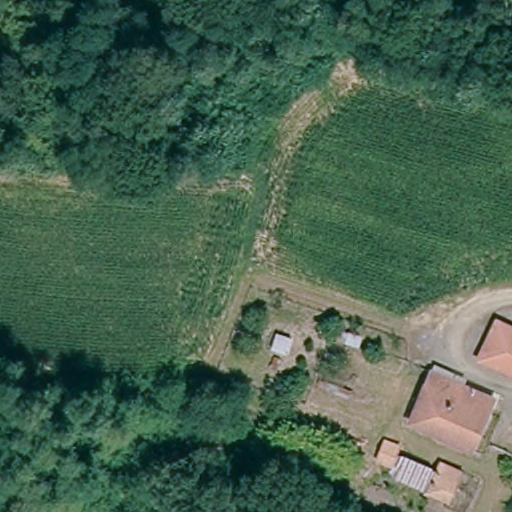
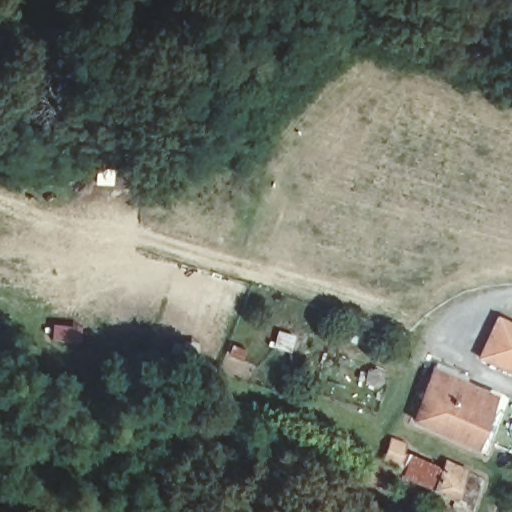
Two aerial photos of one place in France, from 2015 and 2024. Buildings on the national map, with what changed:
unchanged [(499,321),(512,326),(512,368),(484,356),(499,321)]
unchanged [(500,397),(478,447),(415,419),(439,370),(500,397)]
unchanged [(424,482),(387,463),(389,456),(376,450),(384,432),(397,438),(394,445),(433,461),(437,452),(463,463),(450,494),(424,482)]

